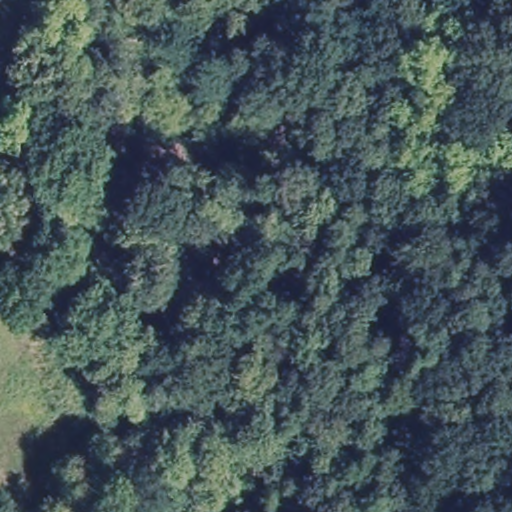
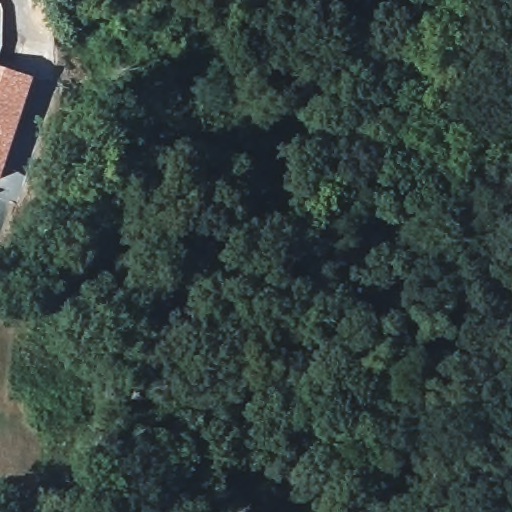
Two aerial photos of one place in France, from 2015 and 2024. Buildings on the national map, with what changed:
new [(27,84),(3,157),(0,167),(0,75),(27,84)]

